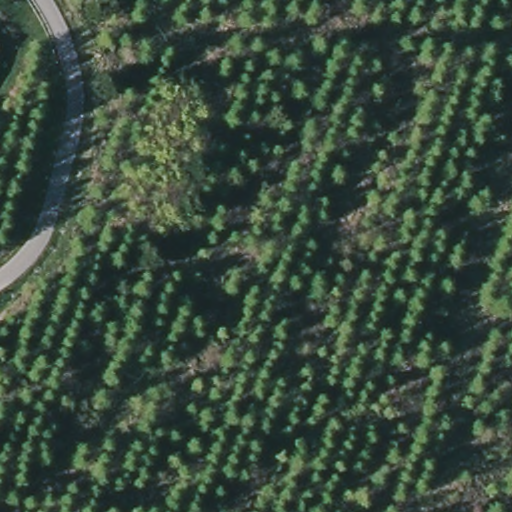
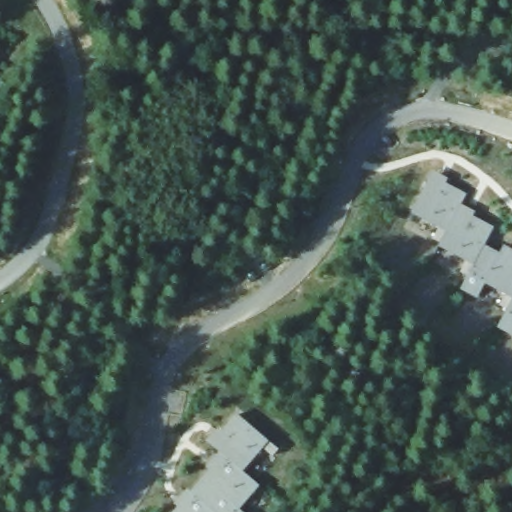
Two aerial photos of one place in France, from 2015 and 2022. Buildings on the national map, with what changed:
new [(446,183),(467,193),(461,204),(475,211),(473,215),(494,227),(485,244),(500,252),(503,245),(512,249),(512,335),(497,328),(506,309),(499,306),(506,293),(484,284),(477,298),(460,289),(467,277),(460,274),(467,260),(438,246),(439,244),(433,239),(439,228),(410,212),(433,170),(448,178),(446,183)]
new [(279,449),(273,457),(263,449),(244,472),(260,486),(241,509),(243,512),(172,512),(177,507),(173,504),(187,488),(191,492),(210,469),(206,466),(218,452),(206,441),(218,427),(222,431),(237,413),(279,449)]

